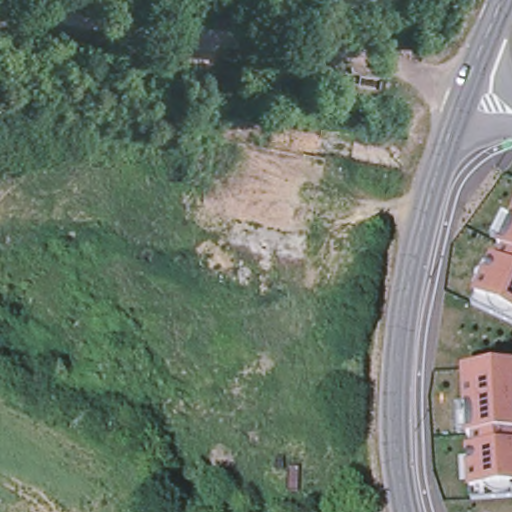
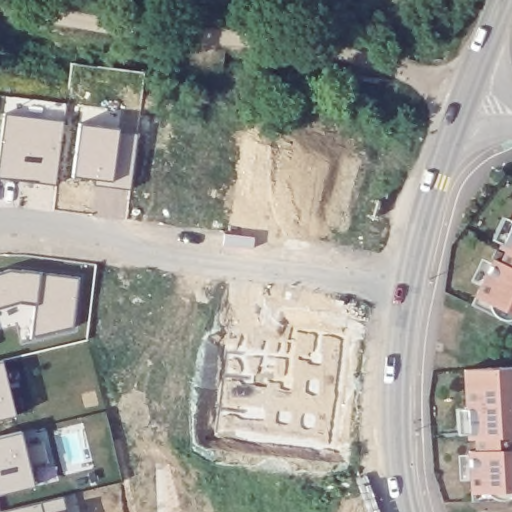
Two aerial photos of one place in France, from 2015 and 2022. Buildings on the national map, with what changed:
new [(4,113),(63,121),(55,186),(0,178),(0,145),(4,113)]
new [(118,128),(118,130),(138,133),(130,190),(110,187),(111,182),(72,177),(79,123),(118,128)]
unchanged [(492,240),(503,215),(511,218),(512,215),(512,312),(474,294),(500,247),(492,240)]
new [(9,269),(22,270),(79,277),(73,328),(30,339),(34,301),(18,299),(0,304),(0,272),(9,269)]
new [(2,360),(15,415),(0,419),(0,361),(2,360)]
unchanged [(459,439),(457,408),(468,404),(466,372),(512,368),(512,491),(469,490),(467,440),(459,439)]
new [(21,431),(24,446),(43,441),(48,462),(29,466),(34,486),(0,494),(0,436),(21,431)]
new [(67,512),(0,512),(0,511),(3,511),(63,496),(67,512)]

